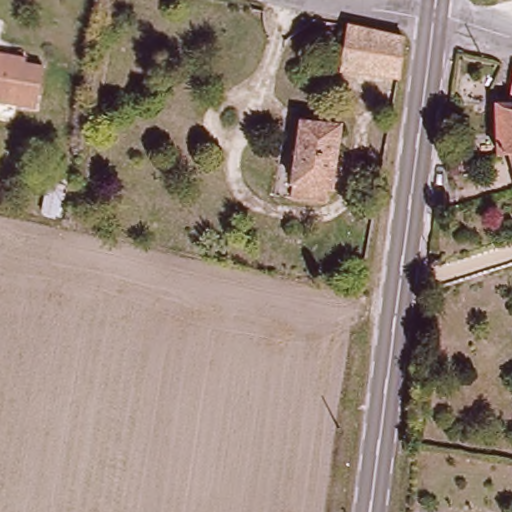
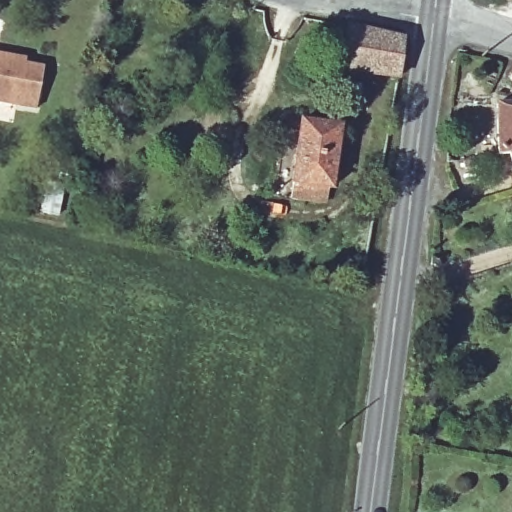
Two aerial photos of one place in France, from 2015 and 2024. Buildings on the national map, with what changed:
unchanged [(394,82),(342,70),(349,25),(404,38),(394,82)]
unchanged [(3,50),(2,55),(20,58),(39,62),(32,103),(0,98),(0,50),(3,50)]
unchanged [(498,155),(496,104),(508,105),(512,88),(512,153),(510,153),(498,155)]
unchanged [(301,110),(339,115),(329,192),(291,187),(301,110)]
unchanged [(512,160),(510,153),(512,153),(512,160)]

